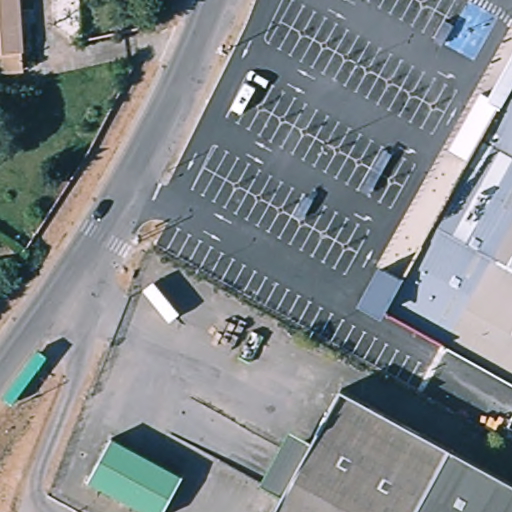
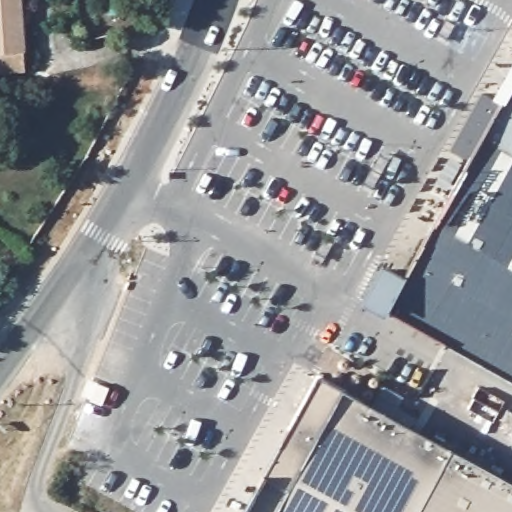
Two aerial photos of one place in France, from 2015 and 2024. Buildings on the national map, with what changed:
unchanged [(16,0),(17,15),(25,14),(26,50),(27,69),(0,69),(0,0),(16,0)]
unchanged [(512,382),(384,315),(362,302),(378,273),(400,285),(512,79),(512,382)]
unchanged [(512,512),(270,512),(279,495),(262,485),(282,448),(292,430),(310,440),(338,386),(512,481),(512,512)]
demolished [(159,512),(144,512),(83,480),(107,435),(179,475),(159,512)]

